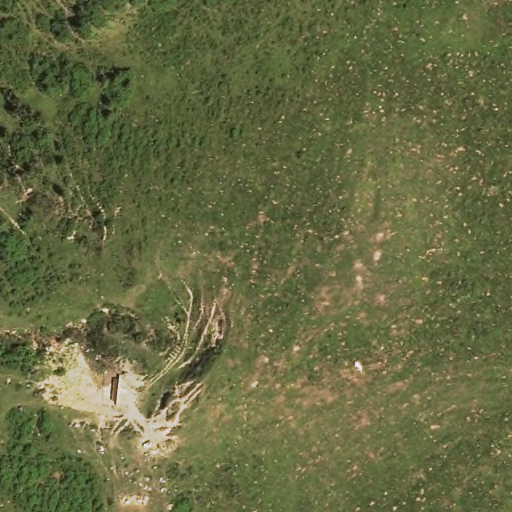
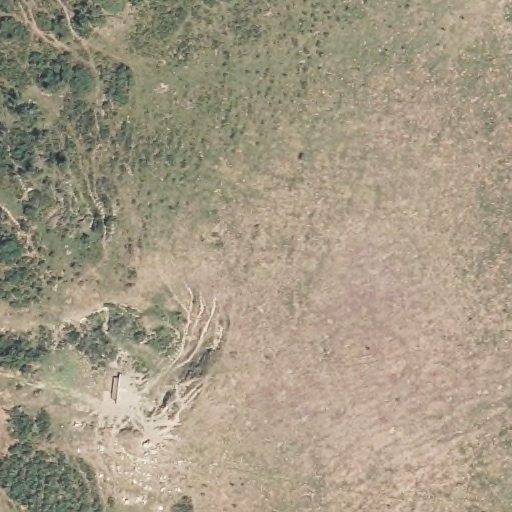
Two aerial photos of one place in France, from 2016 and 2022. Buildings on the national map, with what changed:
unchanged [(161,414),(165,404),(169,393),(185,399),(177,421),(161,414)]

